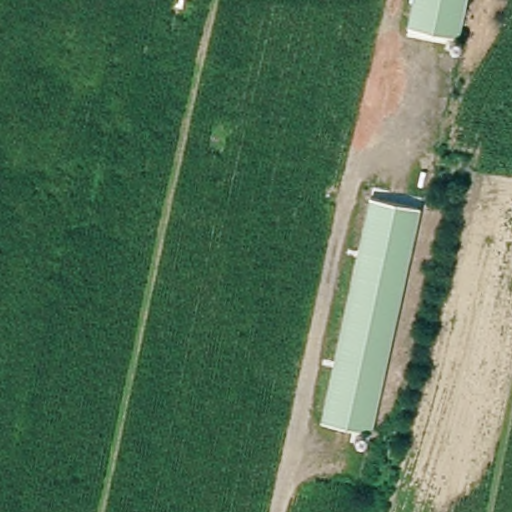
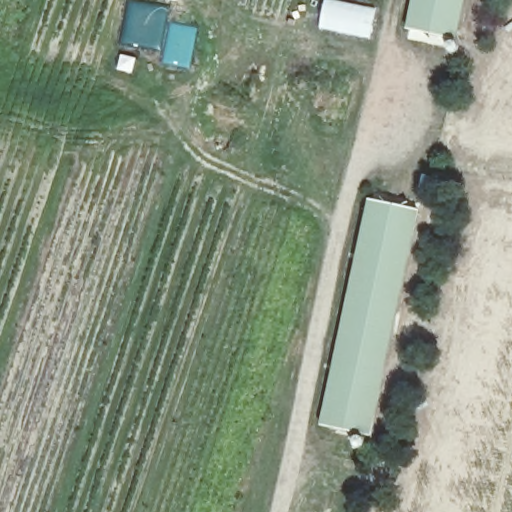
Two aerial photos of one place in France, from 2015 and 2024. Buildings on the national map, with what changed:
new [(323,0),(338,0),(375,8),(369,39),(317,28),(323,0)]
unchanged [(453,40),(406,30),(412,0),(461,0),(453,40)]
unchanged [(417,209),(369,432),(323,422),(370,199),(417,209)]

